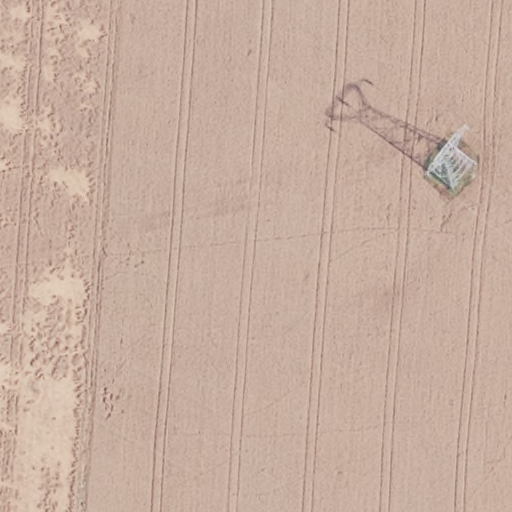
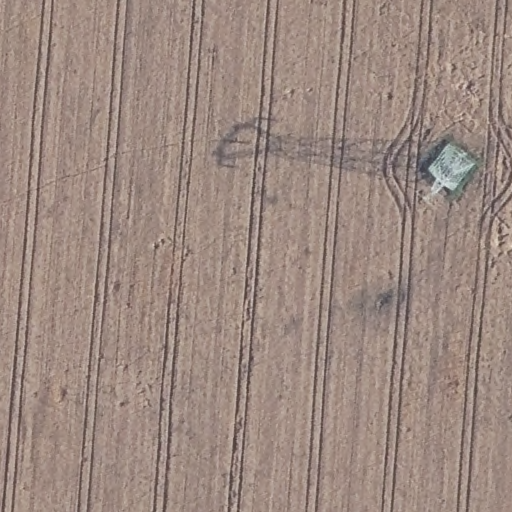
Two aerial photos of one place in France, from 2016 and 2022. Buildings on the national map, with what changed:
[]

